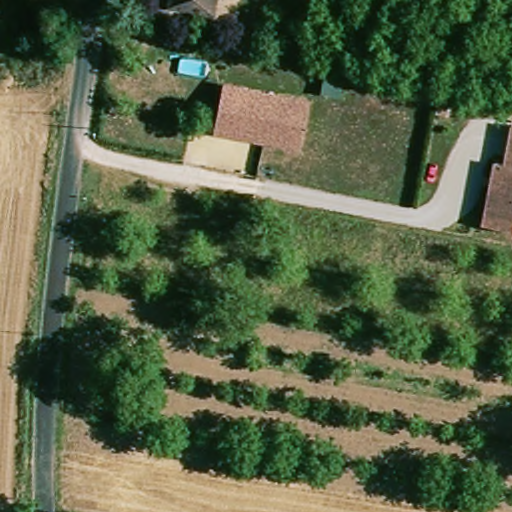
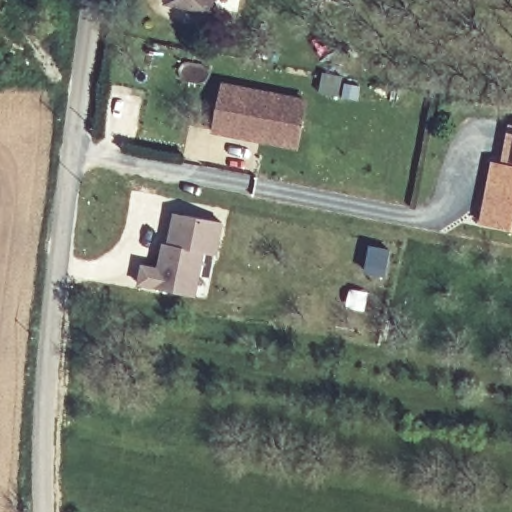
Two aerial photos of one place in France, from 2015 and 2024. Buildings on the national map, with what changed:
unchanged [(174,1),(175,0),(216,0),(215,8),(174,1)]
unchanged [(223,81),(310,99),(301,148),(213,131),(223,81)]
unchanged [(503,164),(509,124),(512,124),(512,231),(482,224),(492,162),(503,164)]
new [(172,211),(224,222),(216,257),(208,255),(166,241),(172,211)]
new [(141,261),(156,265),(163,240),(166,241),(208,255),(198,296),(136,286),(141,261)]

